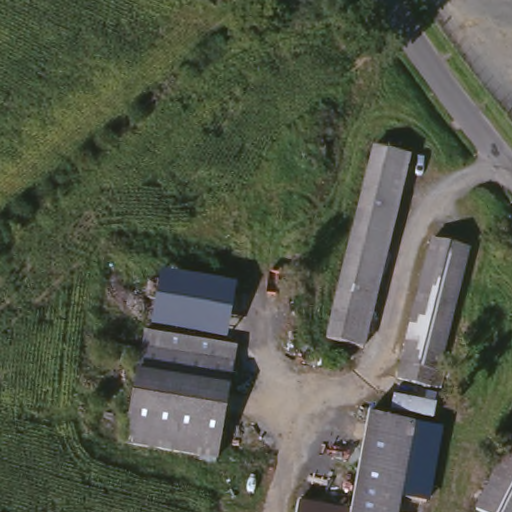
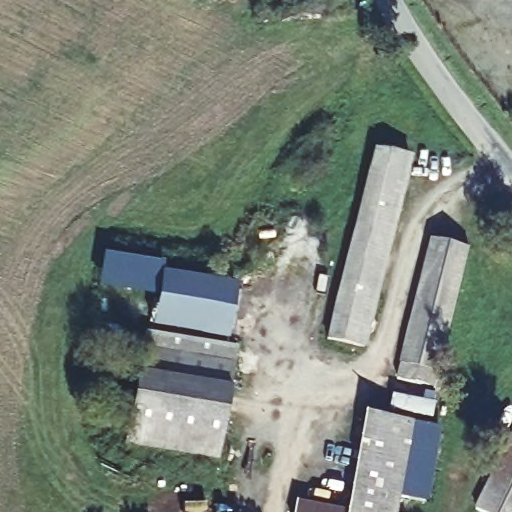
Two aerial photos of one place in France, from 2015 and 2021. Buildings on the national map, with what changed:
unchanged [(411,165),(366,351),(325,343),(369,156),(411,165)]
unchanged [(477,250),(432,412),(388,403),(434,245),(477,250)]
new [(163,262),(161,272),(156,298),(97,287),(102,252),(163,262)]
unchanged [(227,340),(151,326),(161,272),(236,286),(227,340)]
unchanged [(217,460),(122,443),(144,331),(236,347),(217,460)]
unchanged [(429,512),(293,512),(295,505),(341,511),(359,416),(442,428),(429,512)]
unchanged [(512,430),(512,512),(477,512),(476,512),(512,430)]

